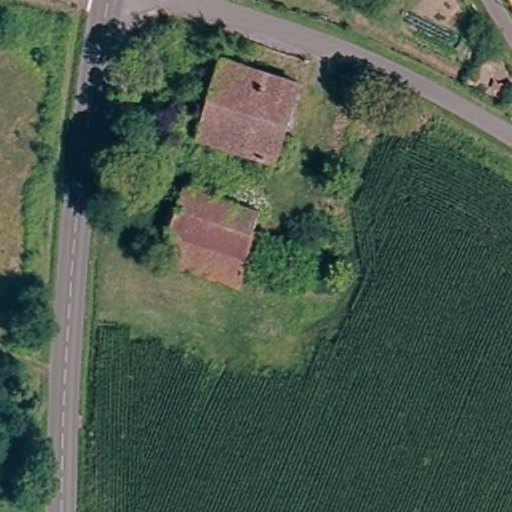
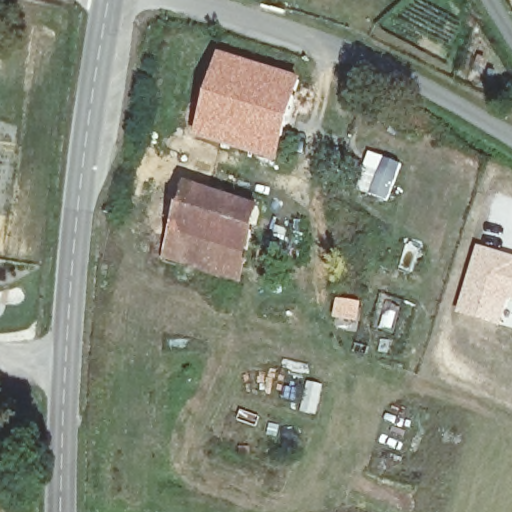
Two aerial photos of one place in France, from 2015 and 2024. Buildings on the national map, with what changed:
unchanged [(293,77),(270,155),(203,135),(224,55),(293,77)]
unchanged [(362,119),(341,110),(353,75),(373,84),(362,119)]
unchanged [(177,227),(189,185),(255,208),(243,249),(177,227)]
unchanged [(235,278),(169,254),(177,227),(243,249),(235,278)]
new [(512,256),(512,300),(508,299),(498,324),(457,312),(477,245),(512,256)]

